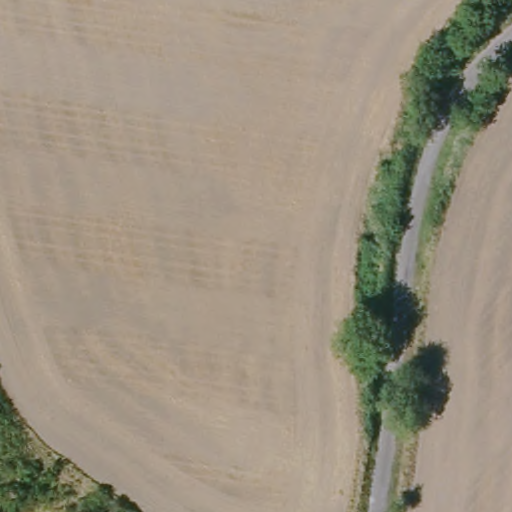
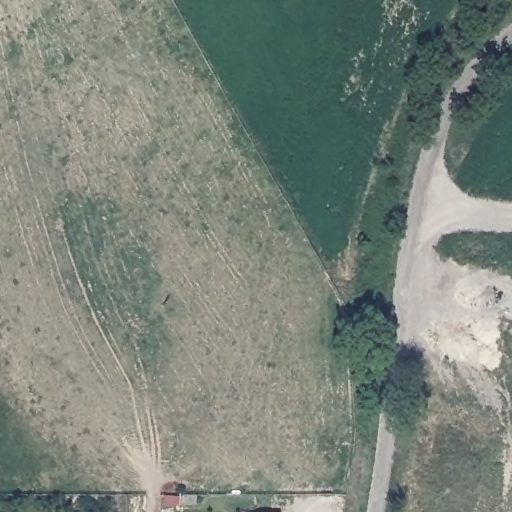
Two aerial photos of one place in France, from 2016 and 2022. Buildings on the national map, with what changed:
[]

